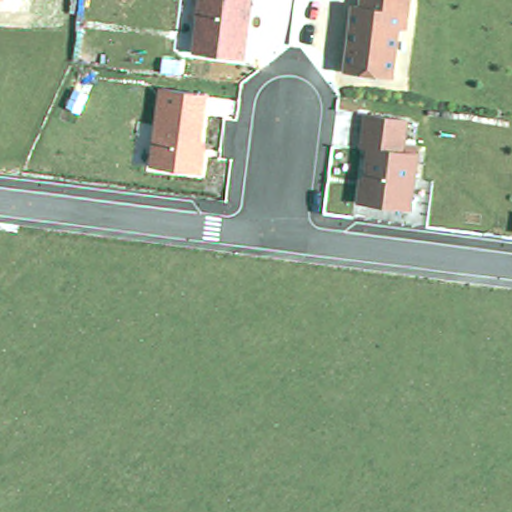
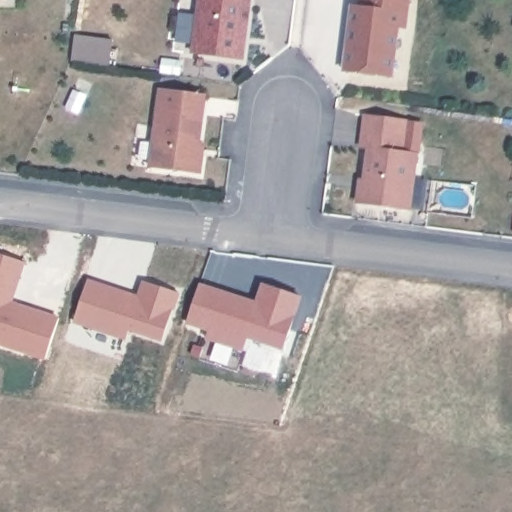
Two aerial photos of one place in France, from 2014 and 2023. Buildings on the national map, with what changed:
unchanged [(244,59),(190,53),(197,0),(251,0),(244,59)]
unchanged [(343,68),(347,41),(350,41),(352,29),(348,28),(352,4),(359,5),(360,0),(408,0),(406,11),(404,25),(397,25),(390,75),(343,68)]
unchanged [(202,140),(207,141),(203,174),(149,167),(159,89),(207,95),(202,140)]
unchanged [(368,145),(360,144),(364,112),(404,117),(400,149),(415,151),(408,208),(357,201),(359,184),(360,177),(364,177),(368,145)]
new [(13,302),(60,317),(47,360),(0,345),(0,254),(27,262),(13,302)]
new [(139,295),(143,281),(181,294),(164,342),(129,331),(127,340),(74,323),(88,278),(139,295)]
new [(201,282),(256,301),(263,283),(303,296),(285,351),(248,338),(244,352),(207,340),(210,331),(187,324),(201,282)]

